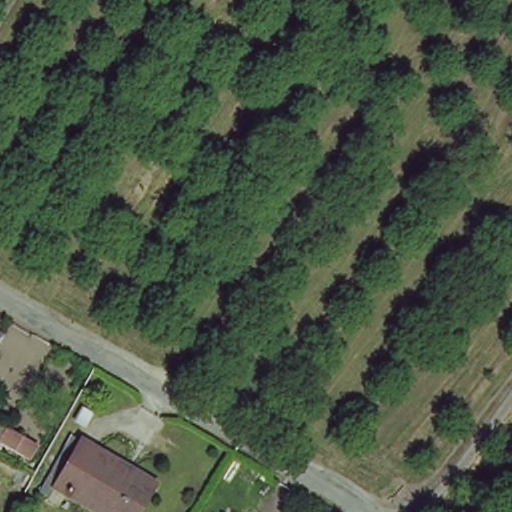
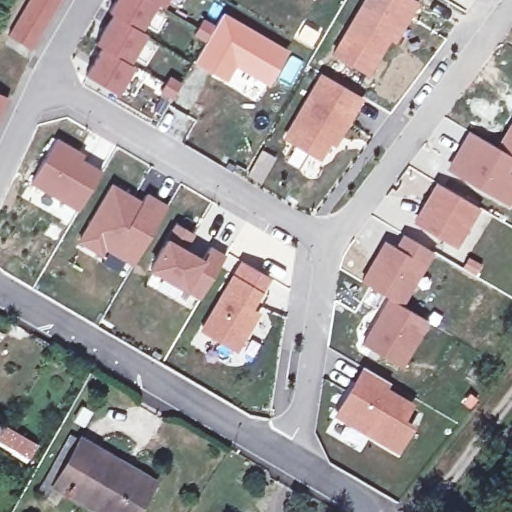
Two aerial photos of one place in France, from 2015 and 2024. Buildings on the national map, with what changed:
new [(9,37),(30,0),(63,0),(33,51),(9,37)]
new [(95,44),(111,14),(108,13),(115,0),(166,0),(162,8),(156,5),(142,31),(147,33),(130,63),(136,66),(119,95),(84,75),(101,47),(95,44)]
new [(418,0),(419,1),(396,45),(389,41),(370,77),(329,54),(360,0),(418,0)]
new [(204,43),(192,35),(203,16),(215,24),(223,11),(291,51),(270,86),(235,66),(225,81),(192,63),(204,43)]
new [(363,98),(336,149),(328,145),(321,159),(282,138),(319,72),(363,98)]
new [(9,98),(0,117),(0,94),(9,98)]
new [(495,145),(512,118),(512,156),(495,145)]
new [(495,145),(512,156),(512,167),(510,171),(512,172),(512,205),(511,208),(446,171),(468,130),(495,145)]
new [(55,137),(85,153),(83,158),(104,171),(78,213),(29,184),(55,137)]
new [(261,148),(277,157),(261,184),(246,174),(261,148)]
new [(481,207),(457,249),(412,223),(436,181),(481,207)]
new [(111,182),(142,199),(146,192),(169,205),(134,267),(107,251),(103,258),(77,242),(111,182)]
new [(175,221),(196,234),(188,248),(201,255),(208,244),(224,254),(198,299),(148,269),(175,221)]
new [(384,239),(394,245),(402,233),(435,252),(404,306),(386,297),(360,282),(384,239)]
new [(261,293),(254,306),(261,310),(237,353),(199,332),(233,274),(261,293)]
new [(386,297),(404,306),(426,320),(433,309),(443,315),(437,327),(429,322),(403,369),(360,343),(386,297)]
new [(391,385),(388,389),(415,405),(406,421),(416,427),(398,456),(334,417),(362,368),(391,385)]
unchanged [(81,431),(156,473),(133,512),(117,512),(55,477),(81,431)]

